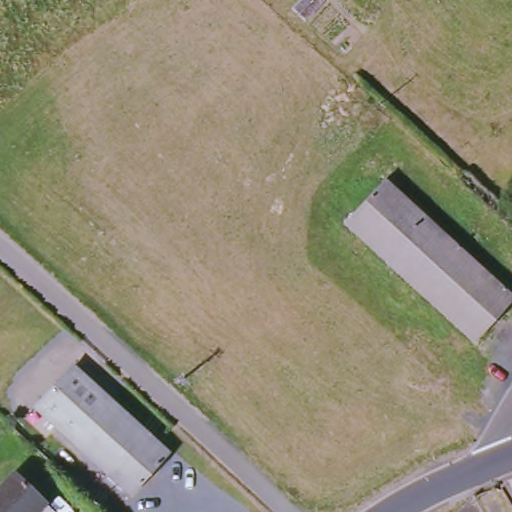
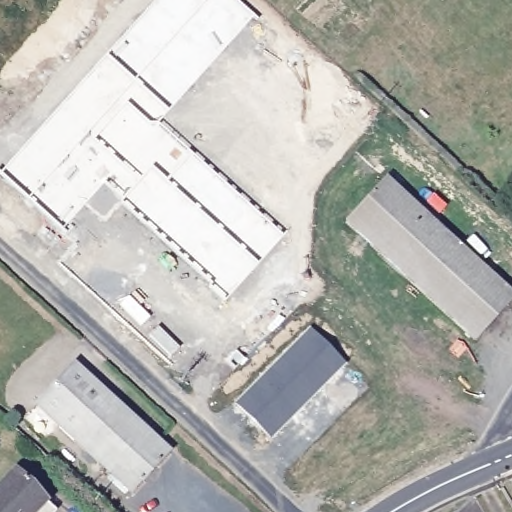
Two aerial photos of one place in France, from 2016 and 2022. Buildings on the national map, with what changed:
new [(256,14),(162,121),(284,231),(229,299),(107,179),(65,228),(1,169),(156,0),(239,0),(256,14)]
unchanged [(512,297),(512,300),(474,342),(345,224),(384,181),(512,297)]
new [(238,401),(312,327),(345,361),(272,435),(238,401)]
unchanged [(74,366),(173,453),(133,498),(34,411),(74,366)]
unchanged [(41,512),(0,512),(0,496),(16,479),(46,506),(41,512)]

